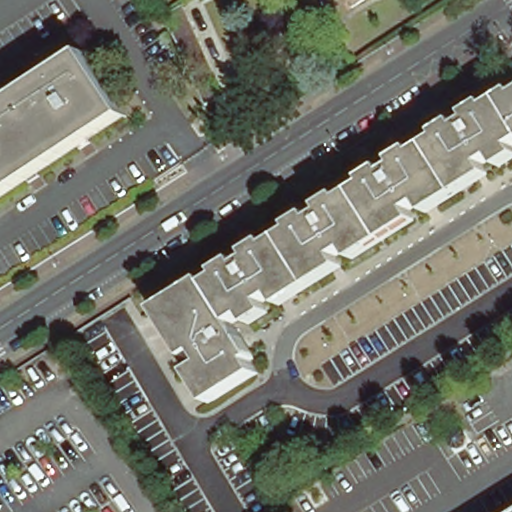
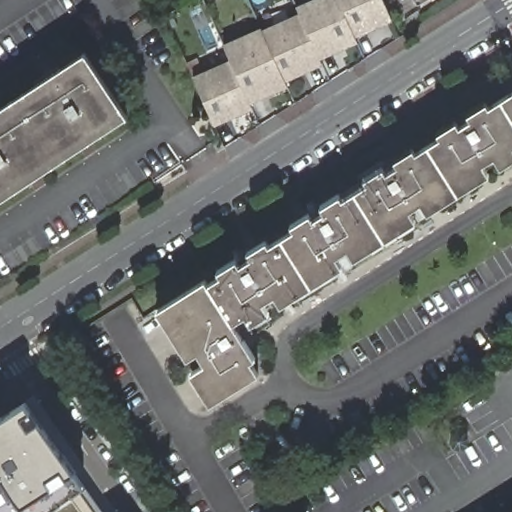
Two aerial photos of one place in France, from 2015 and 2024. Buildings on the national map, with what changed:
new [(358,43),(322,58),(301,12),(298,6),(314,0),(340,0),(356,37),(358,43)]
new [(356,37),(340,0),(383,0),(392,22),(356,37)]
demolished [(361,7),(357,0),(373,0),(361,7)]
new [(420,7),(415,0),(435,0),(420,7)]
demolished [(179,9),(234,95),(219,107),(162,19),(179,9)]
new [(322,58),(324,65),(286,81),(264,29),(301,12),(322,58)]
new [(288,88),(249,103),(230,60),(224,46),(264,29),(286,81),(288,88)]
unchanged [(41,91),(36,84),(59,69),(64,77),(90,59),(124,111),(0,193),(0,116),(2,117),(41,91)]
new [(251,108),(214,124),(192,77),(230,60),(249,103),(251,108)]
unchanged [(206,285),(210,290),(221,284),(216,278),(237,264),(241,270),(252,263),(247,257),(266,245),(270,252),(292,237),(289,230),(308,217),(312,224),(325,216),(320,210),(337,199),(342,205),(367,189),(362,182),(381,170),(386,177),(397,170),(392,162),(410,150),(416,158),(440,142),(435,134),(453,122),(457,131),(470,123),(465,114),(481,104),(487,112),(512,96),(512,147),(509,149),(512,154),(512,158),(497,168),(492,160),(481,167),(486,175),(427,214),(421,206),(409,214),(415,221),(355,260),(350,252),(337,260),(342,268),(285,305),(280,298),(267,306),(272,314),(252,327),(247,318),(236,326),(258,361),(256,364),(264,376),(222,403),(201,372),(208,366),(201,355),(192,359),(162,313),(206,285)]
new [(106,512),(0,512),(0,415),(26,398),(106,512)]
unchanged [(460,429),(466,429),(470,435),(469,437),(466,442),(461,444),(457,443),(456,443),(453,439),(455,433),(460,429)]

